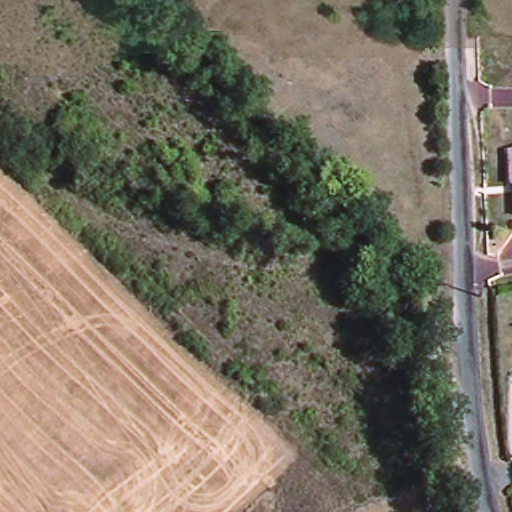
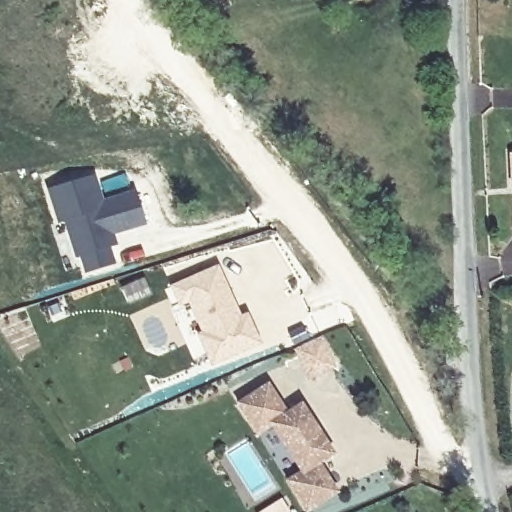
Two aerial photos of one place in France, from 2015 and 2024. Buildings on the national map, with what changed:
unchanged [(508,151),(512,150),(512,183),(511,183),(508,151)]
new [(95,172),(103,197),(135,188),(145,225),(113,234),(115,244),(114,244),(115,245),(110,247),(115,263),(83,273),(77,257),(75,258),(63,222),(57,224),(46,187),(95,172)]
new [(218,268),(241,319),(247,316),(260,344),(212,365),(200,336),(204,334),(190,302),(180,306),(173,288),(218,268)]
new [(143,275),(152,294),(127,304),(119,286),(143,275)]
new [(306,512),(303,512),(284,480),(298,471),(270,427),(255,436),(235,403),(268,382),(285,411),(302,402),(334,455),(318,463),(337,492),(306,512)]

